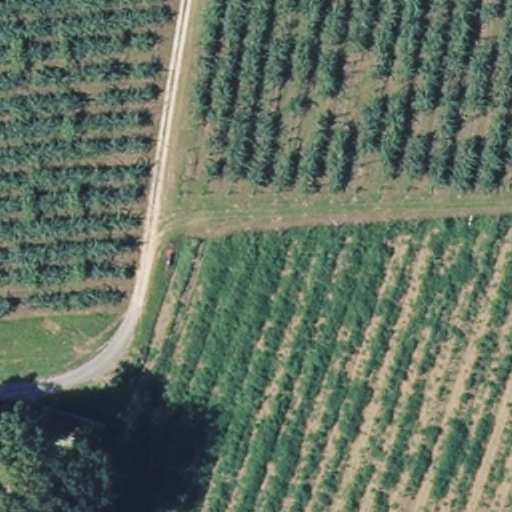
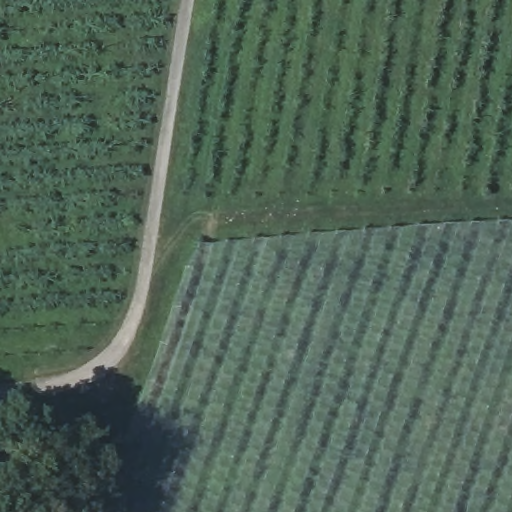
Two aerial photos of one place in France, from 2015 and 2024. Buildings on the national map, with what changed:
unchanged [(94,425),(38,428),(39,403),(89,395),(94,425)]

